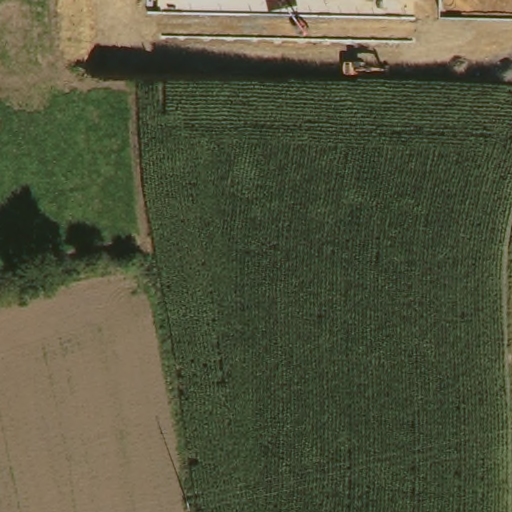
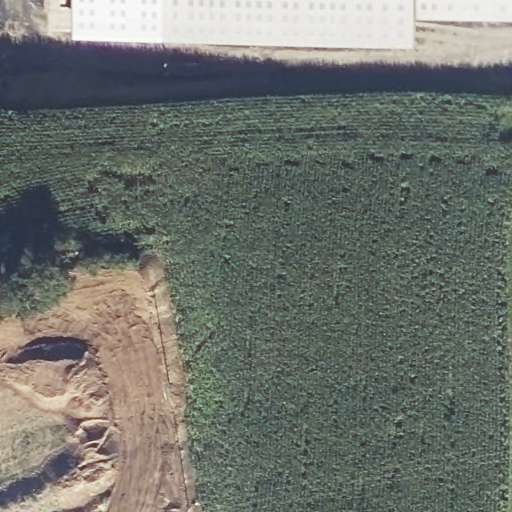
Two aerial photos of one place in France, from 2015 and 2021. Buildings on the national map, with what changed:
new [(512,0),(512,22),(415,18),(414,47),(161,42),(163,0),(512,0)]

